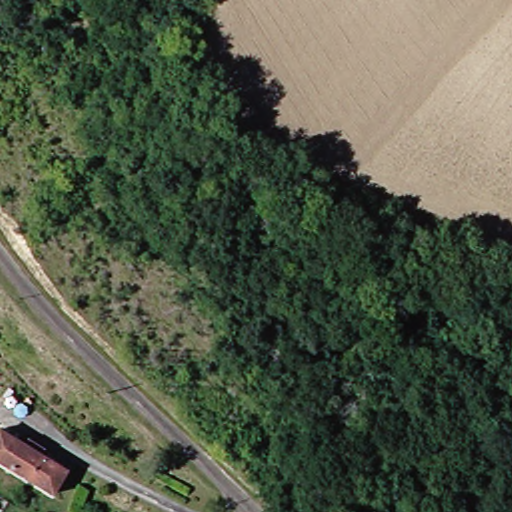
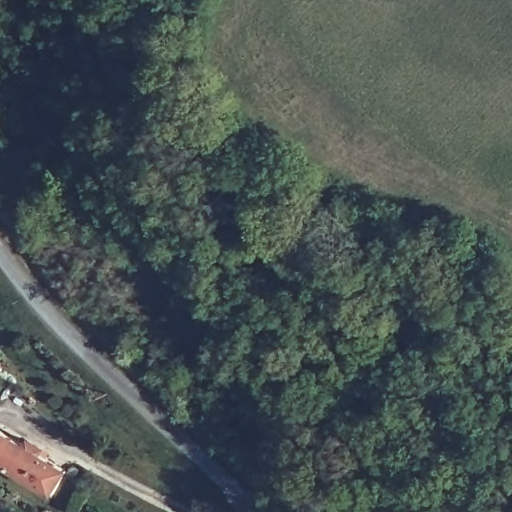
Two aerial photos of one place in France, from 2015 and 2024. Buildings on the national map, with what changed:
unchanged [(0,465),(0,435),(1,433),(70,475),(54,501),(0,465)]

